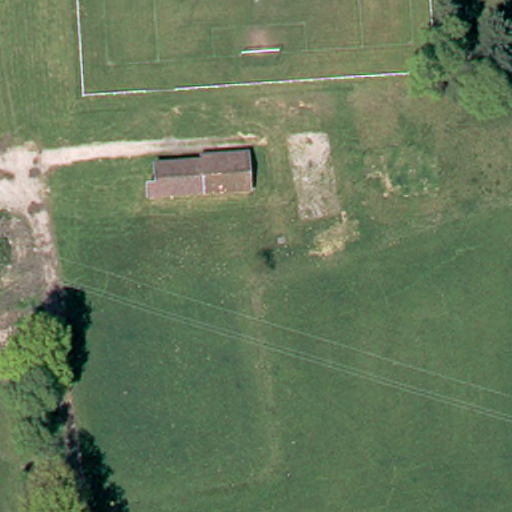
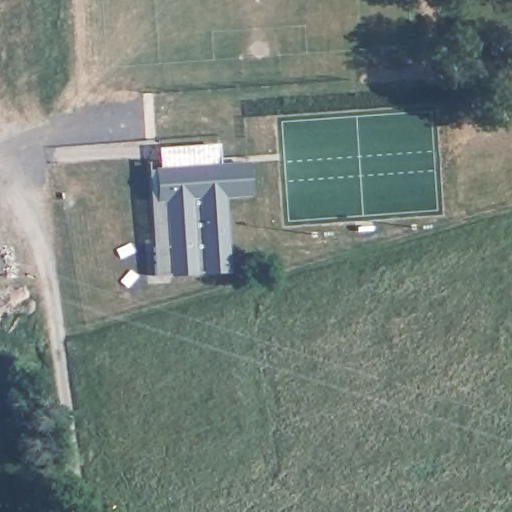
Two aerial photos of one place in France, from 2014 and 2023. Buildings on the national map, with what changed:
unchanged [(196,168),(196,158),(235,156),(244,156),(244,165),(247,195),(239,196),(154,200),(152,169),(196,168)]
new [(232,273),(156,277),(154,247),(167,245),(165,199),(226,196),(232,273)]

